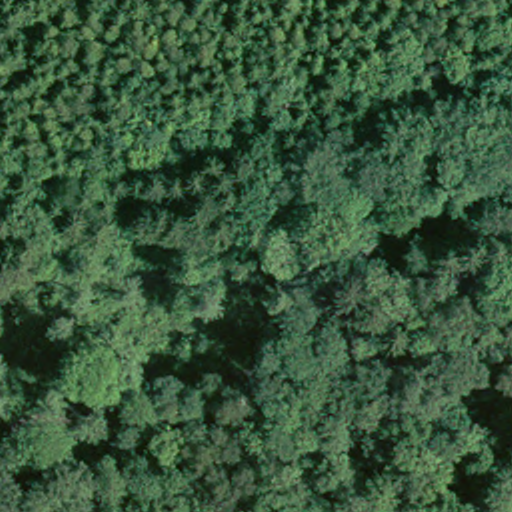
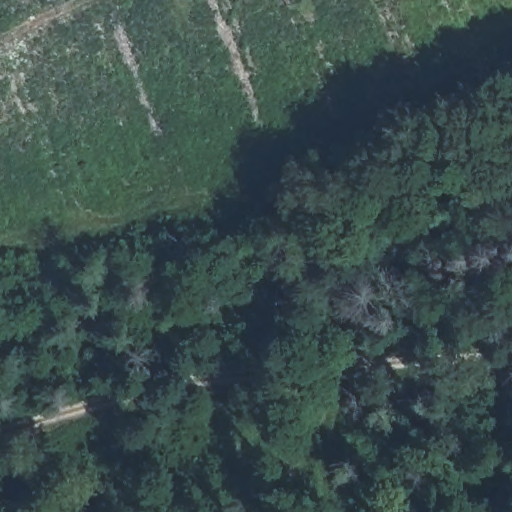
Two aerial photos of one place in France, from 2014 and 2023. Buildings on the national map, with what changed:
[]

